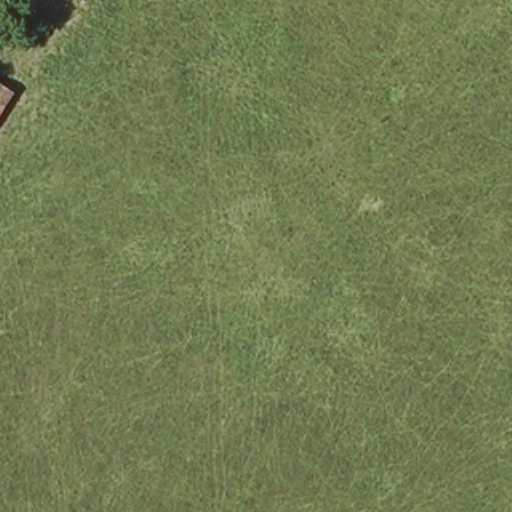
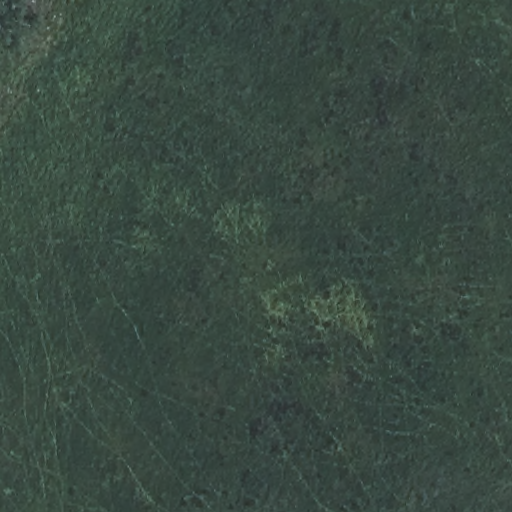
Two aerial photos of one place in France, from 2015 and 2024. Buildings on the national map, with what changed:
unchanged [(0,89),(9,94),(0,111),(0,89)]

